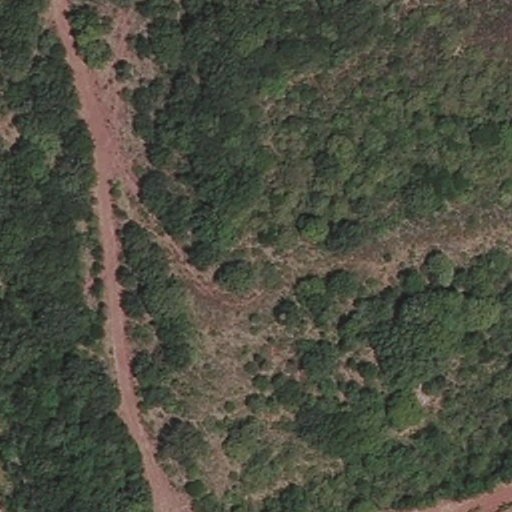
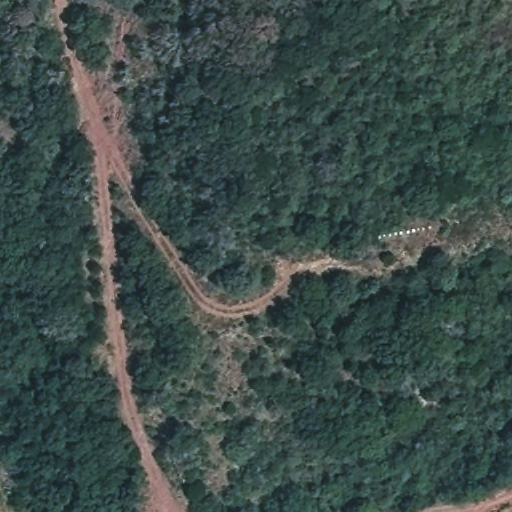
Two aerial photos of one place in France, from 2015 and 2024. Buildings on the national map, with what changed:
unchanged [(388,398),(399,391),(411,402),(396,408),(388,398)]

